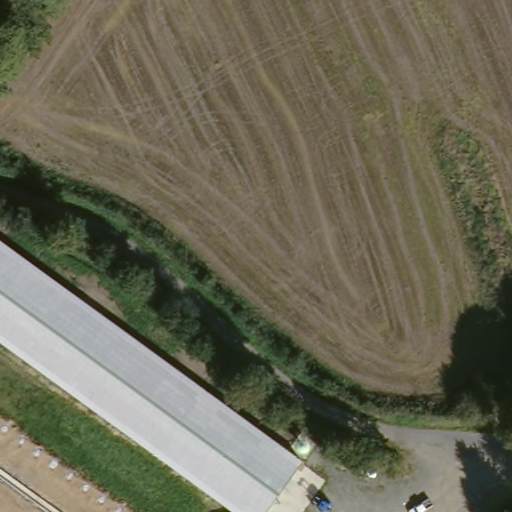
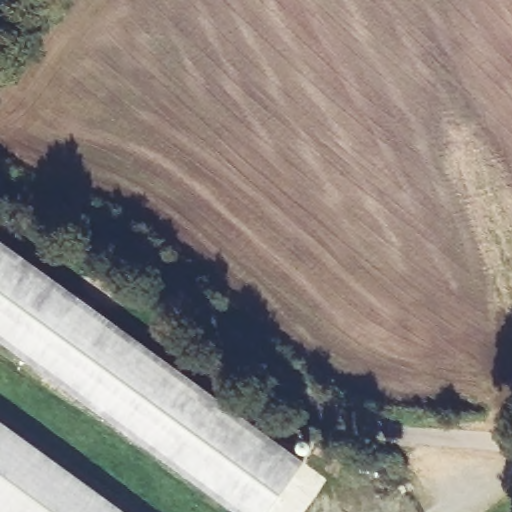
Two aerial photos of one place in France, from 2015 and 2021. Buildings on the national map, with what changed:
unchanged [(0,344),(0,240),(303,461),(266,512),(232,512),(0,344)]
new [(0,421),(124,512),(0,512),(0,421)]

